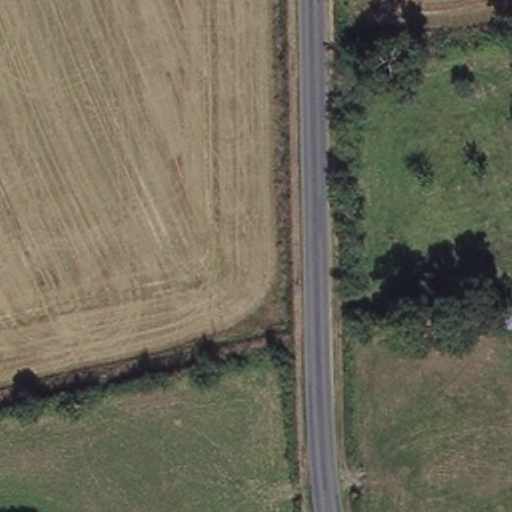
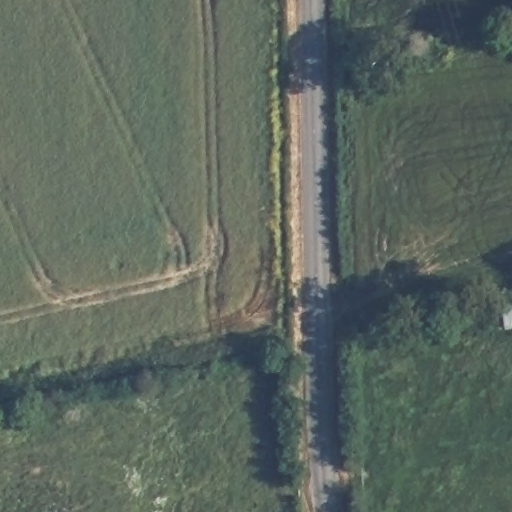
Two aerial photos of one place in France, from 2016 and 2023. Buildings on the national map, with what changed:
unchanged [(504,299),(512,298),(512,322),(505,322),(504,299)]

